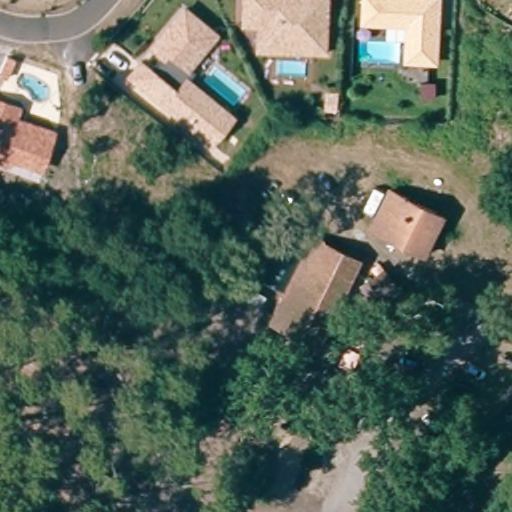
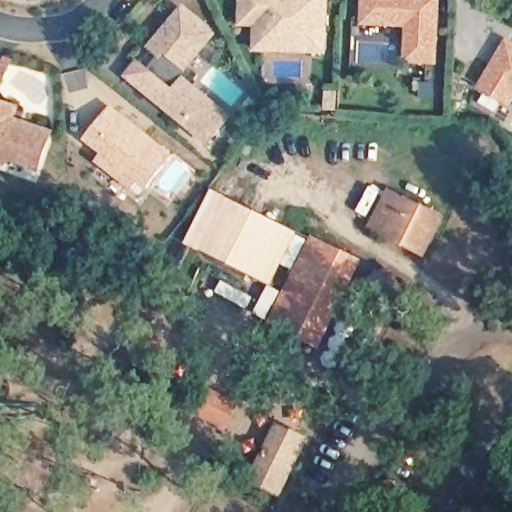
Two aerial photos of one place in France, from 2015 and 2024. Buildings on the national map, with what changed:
unchanged [(253,52),(255,28),(240,26),(242,0),(332,0),(329,57),(253,52)]
unchanged [(404,62),(407,40),(387,39),(388,27),(361,25),(363,0),(442,0),(439,65),(404,62)]
unchanged [(220,32),(192,67),(196,72),(191,79),(236,117),(210,147),(126,76),(142,57),(153,65),(162,56),(150,45),(184,4),(220,32)]
new [(512,109),(511,110),(477,87),(507,38),(512,41),(512,109)]
unchanged [(14,164),(12,170),(0,166),(0,99),(21,106),(18,119),(55,131),(43,172),(14,164)]
new [(147,191),(140,185),(134,193),(96,161),(101,154),(84,141),(112,106),(174,155),(147,191)]
unchanged [(417,256),(364,228),(385,189),(437,217),(417,256)]
new [(271,287),(185,244),(212,190),(296,234),(271,287)]
unchanged [(313,340),(266,318),(305,234),(352,256),(313,340)]
unchanged [(409,305),(383,322),(361,290),(379,277),(391,293),(398,288),(409,305)]
unchanged [(223,432),(199,421),(209,398),(234,410),(223,432)]
unchanged [(274,488),(245,476),(271,420),(300,433),(274,488)]

